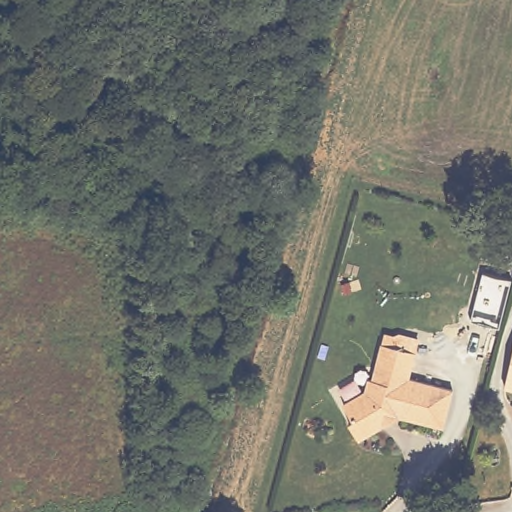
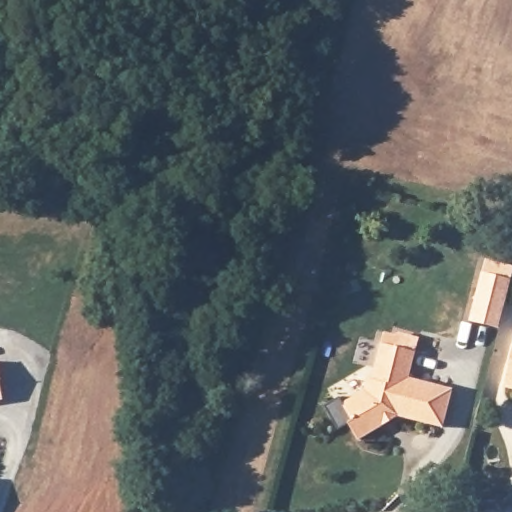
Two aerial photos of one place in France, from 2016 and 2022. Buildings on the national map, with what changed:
unchanged [(487,259),(512,265),(512,281),(500,329),(472,322),(483,271),(487,259)]
unchanged [(360,438),(350,421),(353,418),(344,402),(366,389),(368,376),(372,377),(376,366),(382,341),(416,350),(409,376),(455,387),(445,425),(400,413),(382,425),(360,438)]
new [(5,399),(0,400),(0,372),(5,399)]
unchanged [(512,375),(512,381),(511,381),(512,375)]

